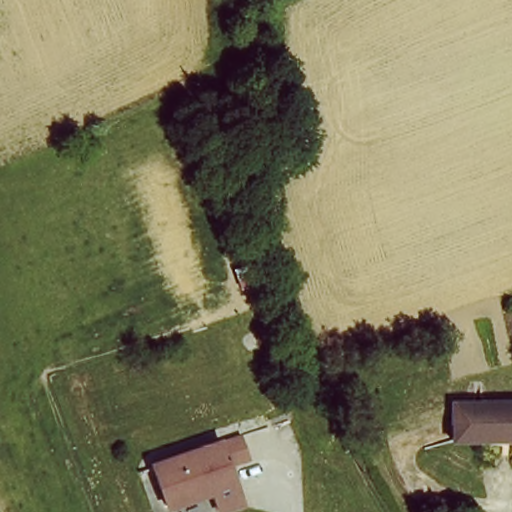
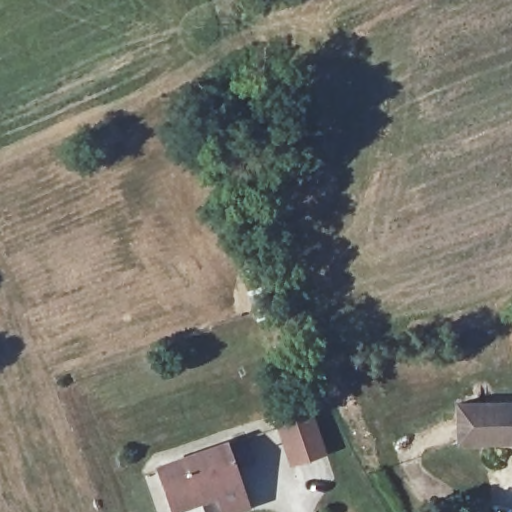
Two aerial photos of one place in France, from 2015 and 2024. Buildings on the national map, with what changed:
unchanged [(462,393),(512,395),(512,432),(496,432),(496,442),(461,441),(462,393)]
new [(294,467),(284,442),(276,424),(309,411),(316,427),(326,453),(294,467)]
unchanged [(226,512),(218,491),(176,506),(161,466),(227,442),(251,502),(226,512)]

